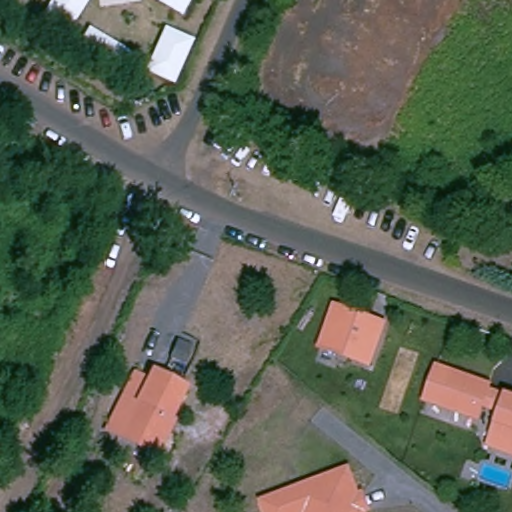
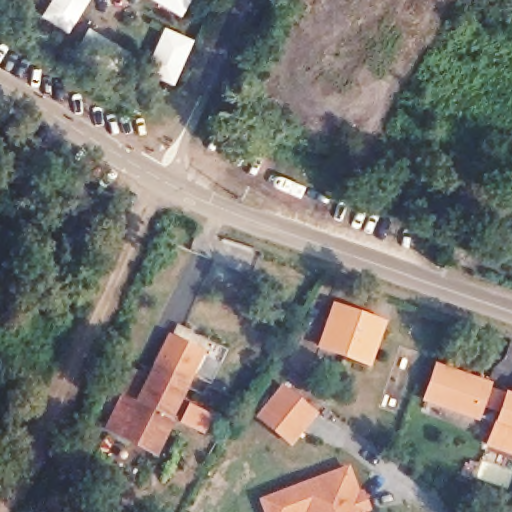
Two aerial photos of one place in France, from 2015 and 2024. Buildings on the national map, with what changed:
unchanged [(337,301),(392,320),(376,370),(320,346),(337,301)]
new [(168,332),(205,352),(189,386),(152,367),(168,332)]
unchanged [(483,449),(488,436),(489,435),(497,416),(478,408),(474,418),(471,416),(423,397),(432,378),(437,365),(487,386),(485,391),(512,402),(512,461),(483,449)]
unchanged [(146,379),(152,367),(189,386),(174,416),(179,418),(159,455),(104,430),(132,371),(146,379)]
new [(320,412),(292,448),(255,417),(282,382),(320,412)]
new [(188,401),(215,414),(205,435),(178,422),(188,401)]
unchanged [(349,464),(368,512),(261,512),(257,500),(349,464)]

